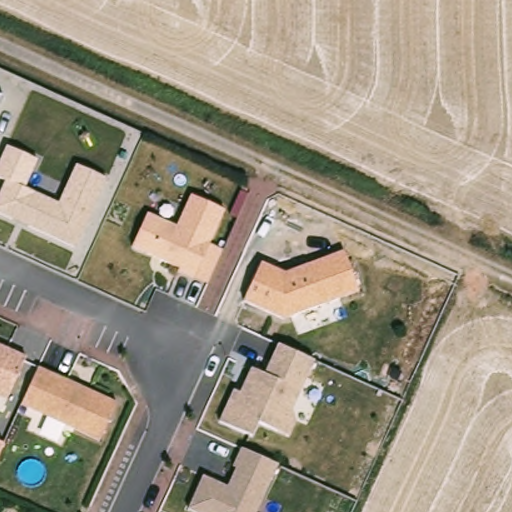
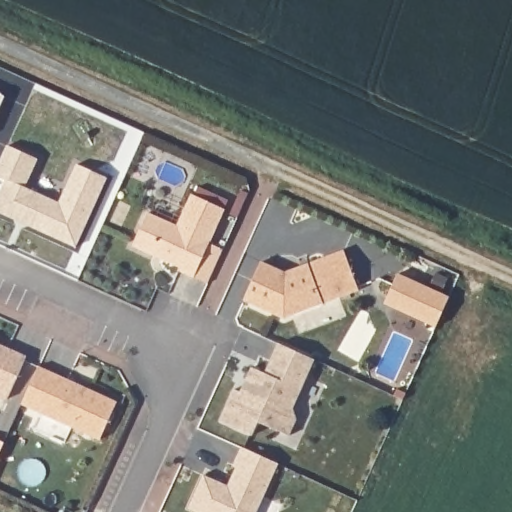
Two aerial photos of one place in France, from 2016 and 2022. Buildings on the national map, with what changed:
unchanged [(0,102),(0,95),(3,96),(0,102)]
unchanged [(24,188),(59,203),(76,164),(108,179),(75,248),(0,213),(0,190),(4,181),(0,179),(0,160),(7,145),(39,159),(24,188)]
unchanged [(225,208),(194,278),(179,272),(181,265),(134,246),(148,212),(179,224),(192,194),(225,208)]
unchanged [(359,289),(287,318),(245,300),(263,261),(286,272),(344,250),(359,289)]
new [(384,304),(398,274),(449,297),(435,328),(384,304)]
unchanged [(235,389),(242,392),(253,369),(265,374),(279,343),(318,357),(286,433),(259,420),(253,434),(223,419),(235,389)]
unchanged [(8,399),(0,396),(0,346),(27,358),(8,399)]
unchanged [(118,404),(100,441),(21,406),(39,367),(118,404)]
unchanged [(0,453),(0,441),(4,443),(0,453)]
unchanged [(279,462),(257,512),(195,512),(190,510),(204,474),(229,484),(243,449),(279,462)]

